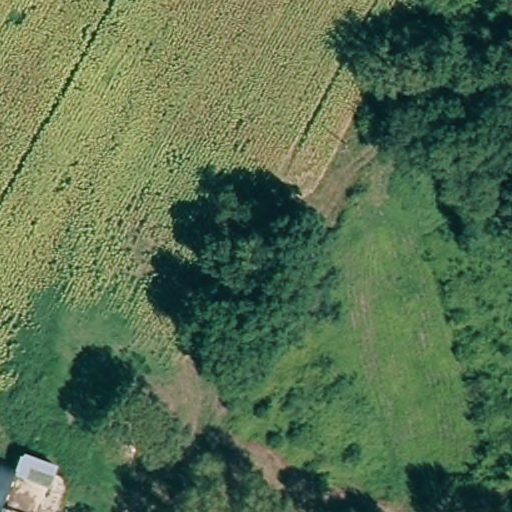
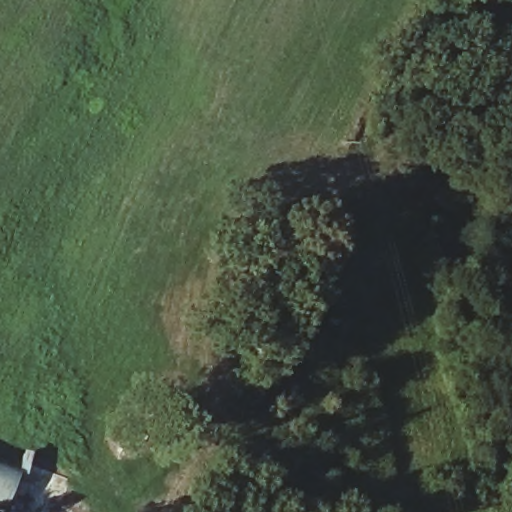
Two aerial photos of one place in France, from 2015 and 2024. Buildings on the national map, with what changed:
unchanged [(26,449),(62,461),(53,488),(17,476),(19,471),(26,449)]
unchanged [(19,471),(17,476),(4,512),(0,512),(0,463),(13,468),(19,471)]

